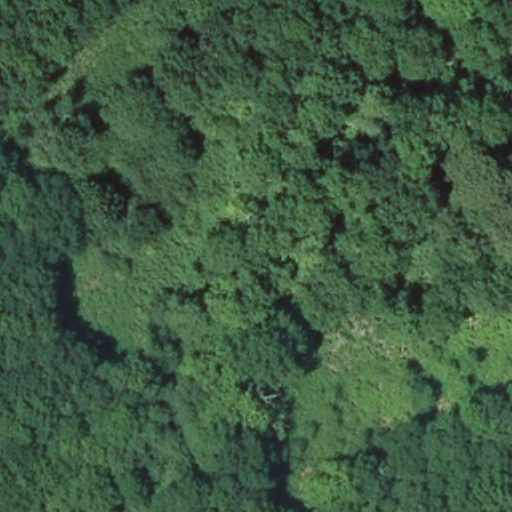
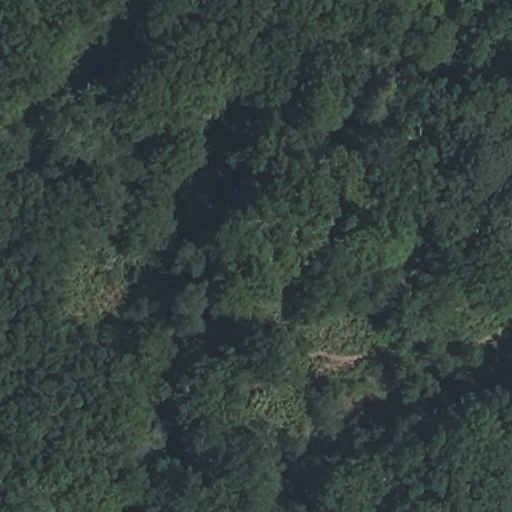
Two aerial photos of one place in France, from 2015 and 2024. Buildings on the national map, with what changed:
[]

